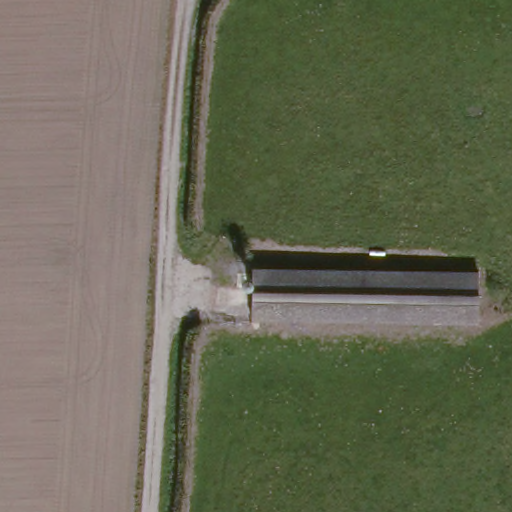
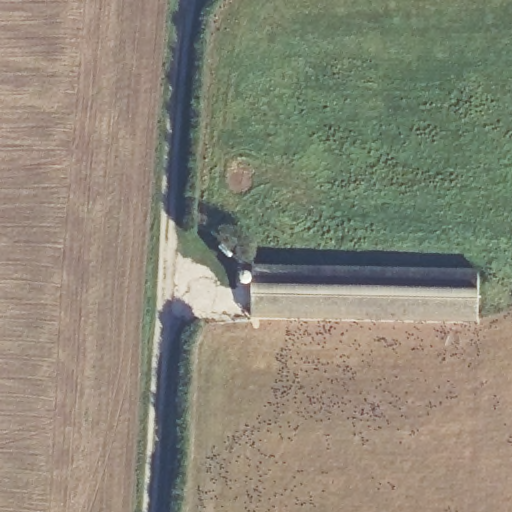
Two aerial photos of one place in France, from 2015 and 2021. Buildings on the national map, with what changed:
unchanged [(476,281),(473,325),(247,313),(251,269),(476,281)]

